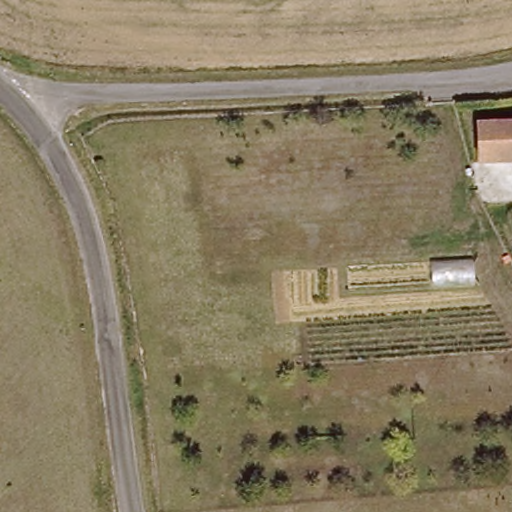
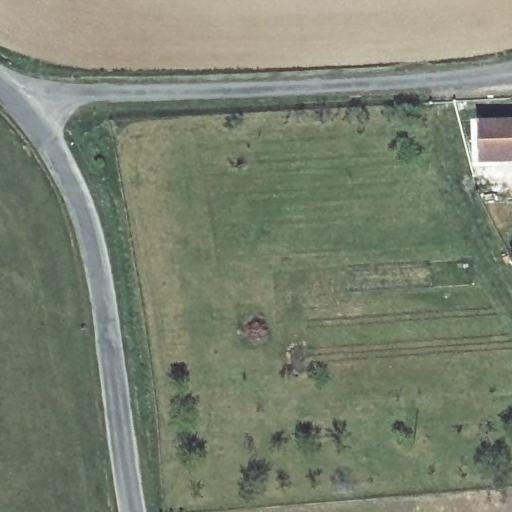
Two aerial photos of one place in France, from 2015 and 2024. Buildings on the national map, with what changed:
unchanged [(478,164),(478,134),(478,122),(512,119),(512,160),(494,162),(478,164)]

